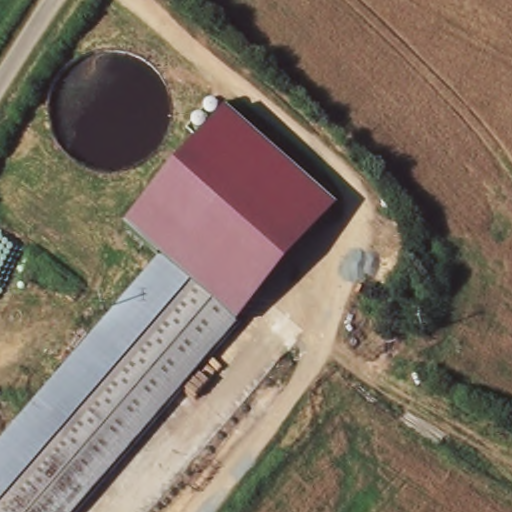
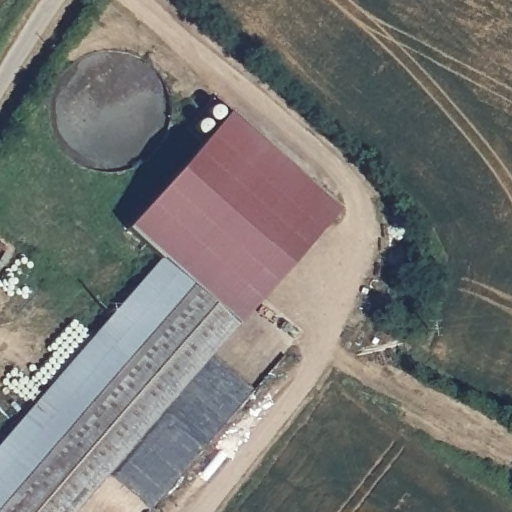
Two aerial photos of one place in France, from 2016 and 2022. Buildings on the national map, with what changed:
unchanged [(194,287),(166,260),(129,226),(225,115),(339,210),(239,326),(194,287)]
unchanged [(195,288),(0,499),(0,441),(166,260),(195,288)]
unchanged [(239,326),(82,512),(0,512),(0,499),(195,288),(239,326)]

